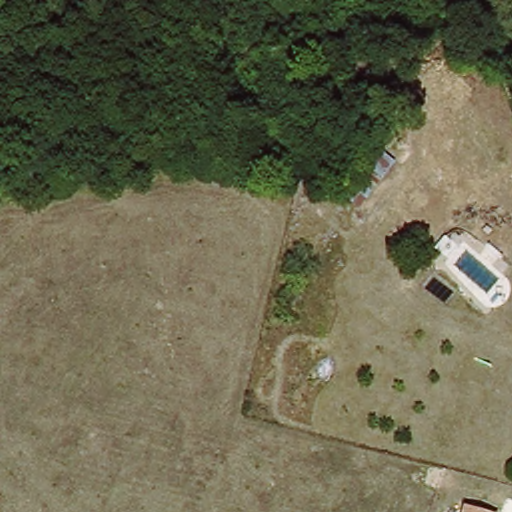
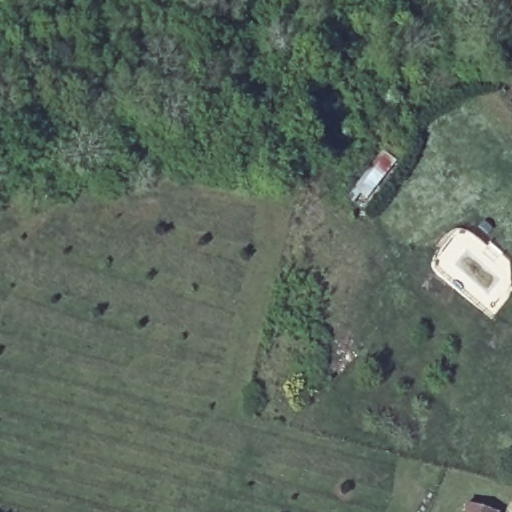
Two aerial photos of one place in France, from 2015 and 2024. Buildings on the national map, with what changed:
unchanged [(492,512),(460,512),(462,506),(492,512)]

